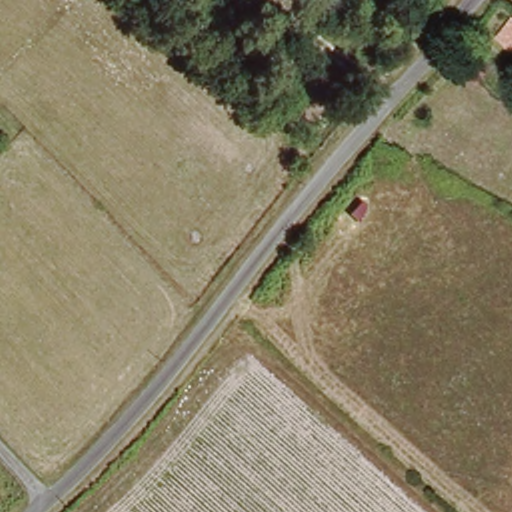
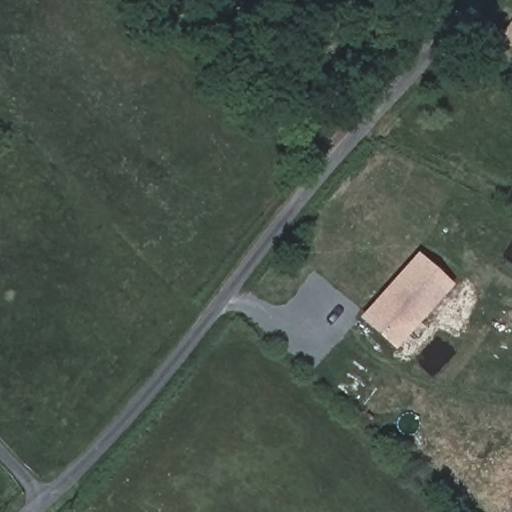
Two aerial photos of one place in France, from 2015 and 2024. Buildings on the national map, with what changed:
unchanged [(504,32),(512,24),(512,40),(504,32)]
new [(417,256),(448,283),(393,344),(362,316),(417,256)]

